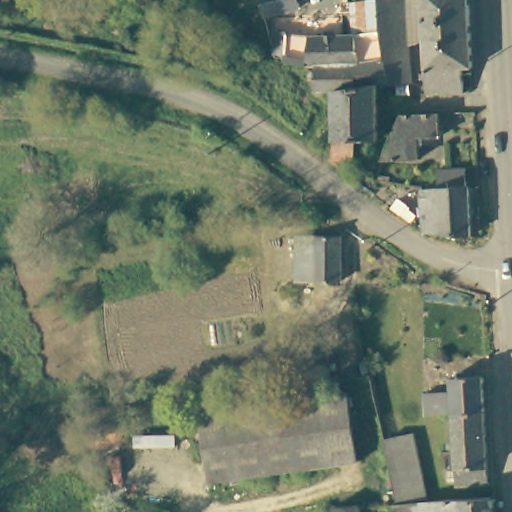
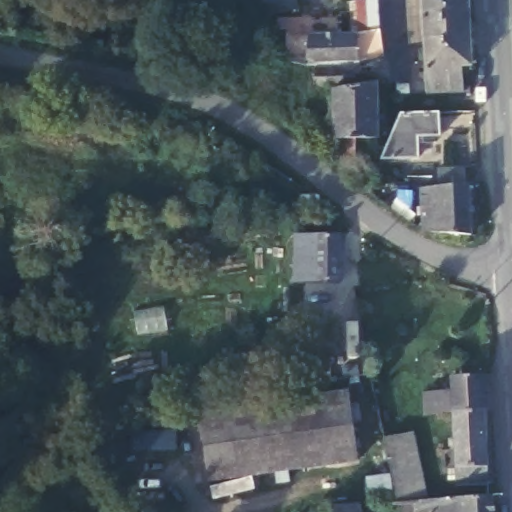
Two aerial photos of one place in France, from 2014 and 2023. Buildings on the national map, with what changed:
unchanged [(295,7),(261,15),(257,0),(293,0),(295,7)]
unchanged [(409,94),(397,94),(397,84),(387,85),(379,85),(378,137),(357,138),(357,159),(336,158),(333,91),(314,92),(311,68),(305,69),(281,64),(271,62),(277,33),(287,36),(305,41),(307,35),(353,33),(351,2),(368,0),(407,0),(408,44),(408,83),(409,94)]
unchanged [(472,37),(424,39),(423,0),(471,0),(472,37)]
unchanged [(461,68),(461,94),(426,94),(424,39),(472,37),(473,67),(461,68)]
unchanged [(441,112),(441,134),(420,135),(419,156),(383,159),(402,113),(441,112)]
unchanged [(436,199),(436,179),(466,179),(467,197),(468,243),(421,239),(422,199),(436,199)]
unchanged [(297,232),(342,233),(342,278),(297,278),(297,232)]
unchanged [(421,390),(452,388),(451,374),(451,357),(481,354),(482,372),(484,409),(452,411),(420,412),(421,390)]
unchanged [(344,393),(352,459),(210,479),(202,412),(344,393)]
unchanged [(456,477),(455,467),(452,411),(484,409),(488,465),(496,464),(497,482),(487,482),(456,485),(456,477)]
unchanged [(493,512),(399,512),(398,503),(392,478),(384,437),(411,432),(416,460),(418,474),(422,501),(441,500),(492,496),(493,512)]
unchanged [(358,511),(359,512),(346,512),(357,511),(358,511)]

